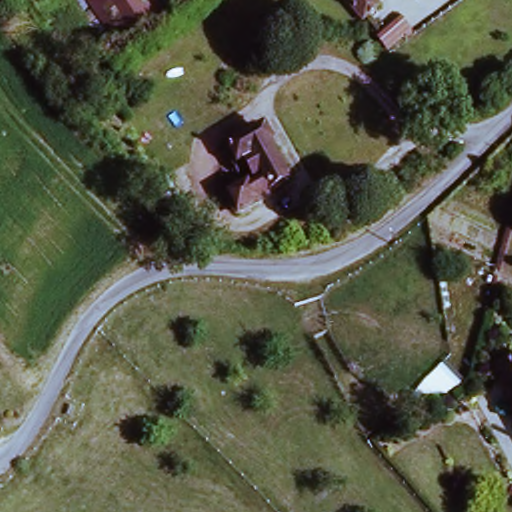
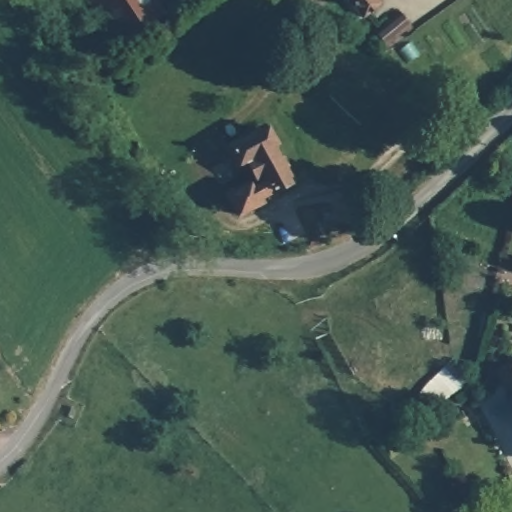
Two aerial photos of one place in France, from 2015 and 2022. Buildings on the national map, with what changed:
unchanged [(164,12),(115,45),(87,0),(156,0),(164,12)]
unchanged [(352,0),(380,0),(364,14),(360,10),(359,8),(352,0)]
unchanged [(403,29),(387,41),(377,30),(394,15),(399,10),(411,24),(403,29)]
unchanged [(254,177),(256,179),(259,177),(251,164),(243,168),(229,142),(248,132),(250,129),(259,124),(261,126),(265,123),(269,130),(282,156),(284,155),(289,164),(287,165),(294,176),(264,193),(265,195),(243,207),(233,189),(254,177)]
unchanged [(512,414),(473,370),(495,350),(512,350),(512,414)]

